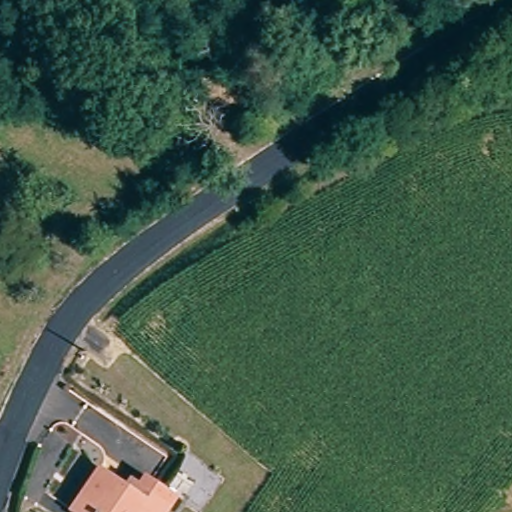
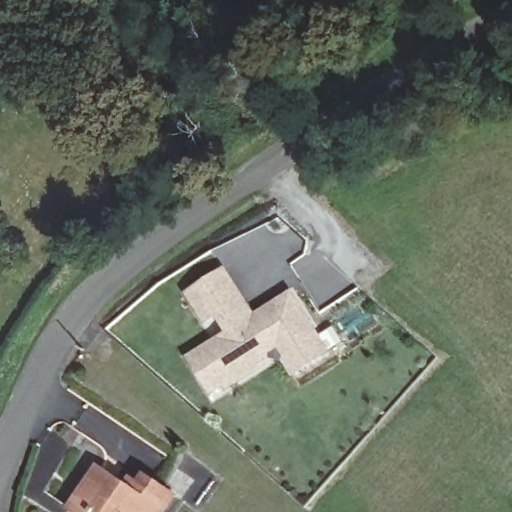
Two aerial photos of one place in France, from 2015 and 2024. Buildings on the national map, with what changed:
new [(271,305),(275,311),(247,329),(243,322),(227,332),(215,313),(204,320),(196,307),(186,292),(222,270),(232,285),(251,317),(271,305)]
new [(291,374),(282,359),(266,355),(253,363),(255,367),(223,386),(221,383),(208,391),(187,357),(227,332),(243,322),(247,329),(275,311),(271,305),(289,294),(316,338),(325,352),(291,374)]
unchanged [(125,480),(137,469),(178,493),(165,512),(70,512),(67,510),(95,462),(125,480)]

